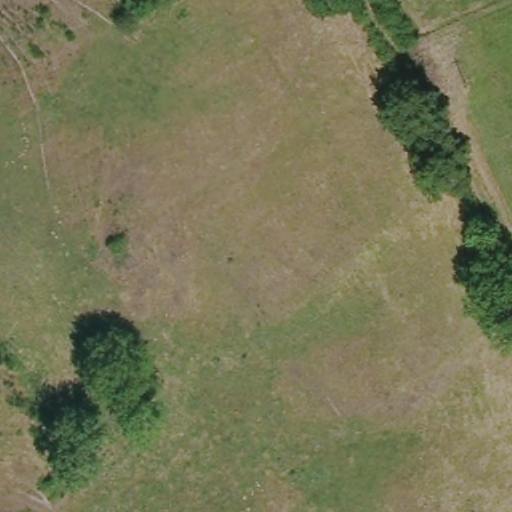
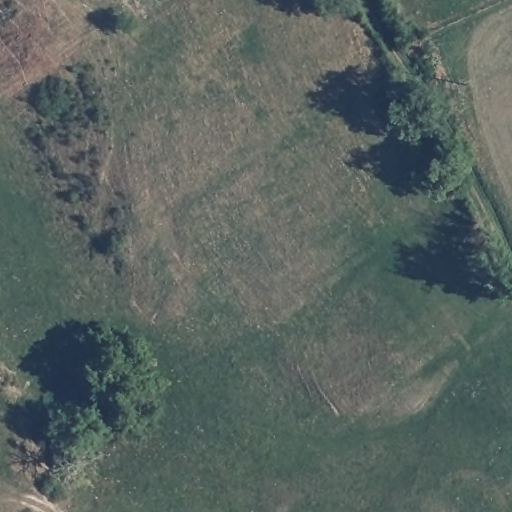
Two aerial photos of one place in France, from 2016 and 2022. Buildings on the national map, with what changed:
[]

